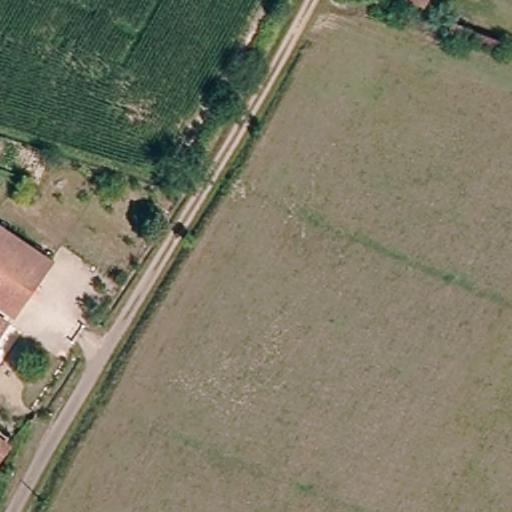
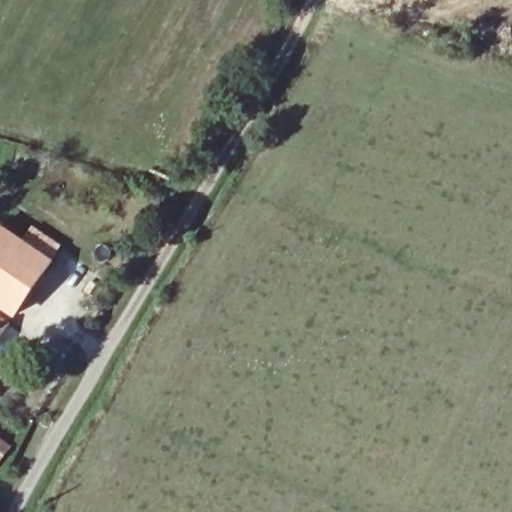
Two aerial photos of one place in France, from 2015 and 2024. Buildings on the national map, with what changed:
unchanged [(410,0),(429,0),(425,7),(410,0)]
unchanged [(5,220),(55,254),(12,318),(0,310),(0,229),(5,220)]
unchanged [(1,331),(0,334),(0,331),(1,331)]
unchanged [(5,447),(0,455),(0,443),(5,447)]

